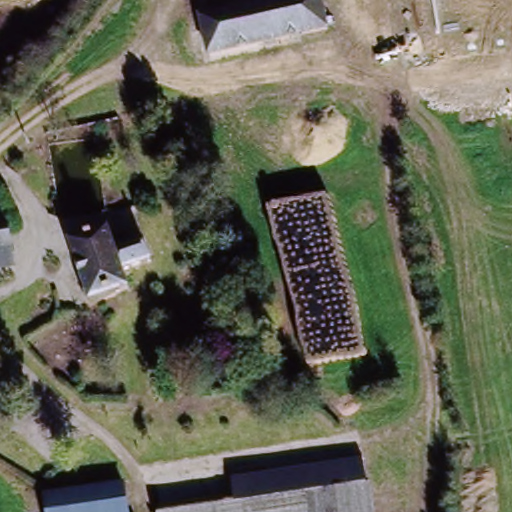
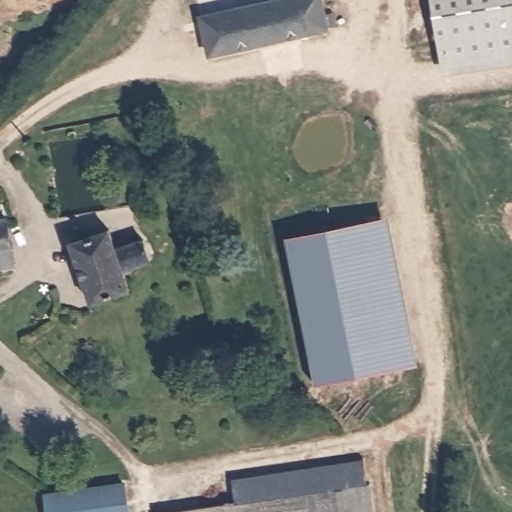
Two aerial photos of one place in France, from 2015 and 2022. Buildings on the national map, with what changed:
demolished [(294,0),(294,1),(200,22),(196,0),(294,0)]
unchanged [(200,22),(294,1),(299,0),(321,0),(328,37),(209,60),(200,22)]
new [(442,75),(430,0),(512,0),(512,64),(442,75)]
unchanged [(12,247),(0,250),(0,216),(6,215),(12,247)]
new [(389,216),(419,365),(315,383),(286,237),(389,216)]
unchanged [(146,242),(153,262),(125,272),(132,292),(93,307),(71,247),(111,233),(117,252),(146,242)]
unchanged [(0,267),(0,250),(12,247),(15,264),(0,267)]
unchanged [(238,507),(235,481),(360,462),(363,488),(363,491),(304,499),(304,512),(201,512),(238,507)]
unchanged [(128,512),(47,512),(45,501),(124,487),(128,512)]
unchanged [(366,512),(304,512),(304,499),(363,491),(366,512)]

